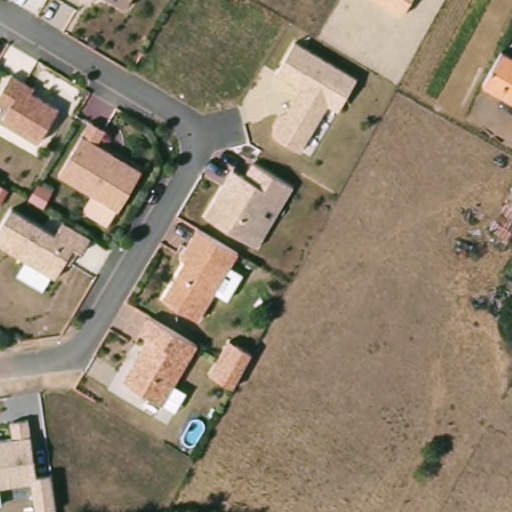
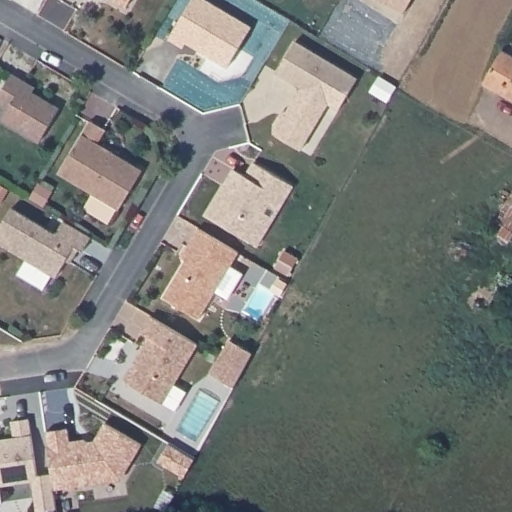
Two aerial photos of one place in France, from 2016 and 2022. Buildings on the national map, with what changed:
unchanged [(115,0),(129,0),(125,6),(115,0)]
new [(206,0),(251,26),(227,69),(185,42),(182,46),(168,40),(192,0),(206,0)]
unchanged [(379,0),(408,0),(400,12),(379,0)]
unchanged [(357,76),(339,107),(328,100),(300,147),(274,131),(274,123),(280,112),(288,108),(302,85),(276,70),(295,40),(357,76)]
unchanged [(512,99),(482,82),(500,50),(512,56),(512,99)]
unchanged [(41,84),(37,90),(62,104),(44,136),(5,116),(10,105),(0,100),(0,94),(15,70),(41,84)]
unchanged [(119,210),(56,171),(88,121),(105,131),(97,144),(143,170),(119,210)]
unchanged [(243,235),(206,213),(223,184),(233,167),(241,171),(245,174),(253,160),(293,184),(284,199),(257,244),(243,235)]
unchanged [(80,253),(72,248),(55,276),(0,245),(0,228),(13,208),(56,232),(63,221),(89,238),(80,253)]
unchanged [(182,254),(187,245),(198,226),(238,250),(199,316),(164,295),(187,257),(182,254)]
unchanged [(154,316),(198,342),(162,402),(123,378),(149,335),(141,330),(151,314),(154,316)]
new [(230,338),(238,342),(252,351),(243,369),(234,385),(211,371),(220,355),(230,338)]
unchanged [(36,475),(48,475),(54,510),(40,512),(34,512),(30,482),(0,487),(0,438),(12,436),(10,421),(27,418),(36,475)]
new [(69,428),(71,442),(95,439),(104,423),(143,445),(121,480),(55,488),(46,432),(69,428)]

